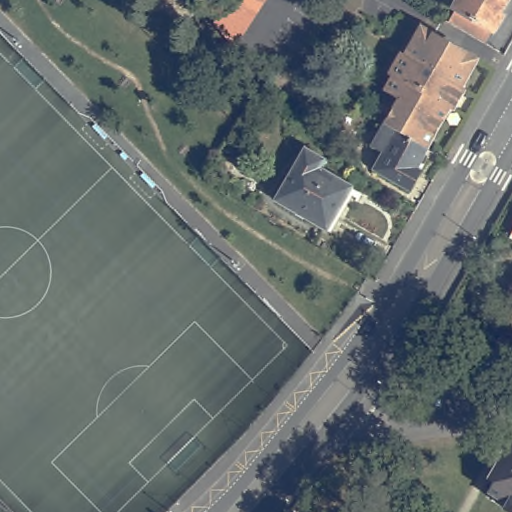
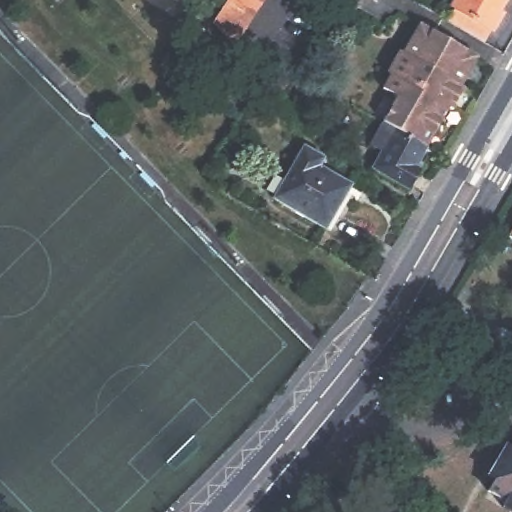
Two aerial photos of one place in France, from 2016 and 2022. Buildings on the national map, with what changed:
unchanged [(260,0),(238,33),(230,44),(210,22),(223,6),(227,0),(260,0)]
unchanged [(461,8),(451,2),(452,0),(511,0),(509,4),(512,7),(512,9),(509,13),(508,12),(498,30),(497,29),(489,43),(453,22),(461,8)]
unchanged [(452,110),(448,108),(426,149),(383,123),(382,123),(398,96),(384,88),(392,75),(388,72),(399,51),(403,54),(421,24),(478,57),(460,87),(464,89),(452,110)]
unchanged [(426,149),(414,167),(419,169),(407,188),(373,168),(382,153),(370,146),(369,145),(382,123),(383,123),(426,149)]
unchanged [(278,198),(309,148),(328,158),(323,167),(355,186),(329,229),(278,198)]
unchanged [(497,492),(504,481),(497,477),(507,463),(512,466),(512,500),(497,492)]
unchanged [(511,507),(512,506),(512,508),(511,507)]

